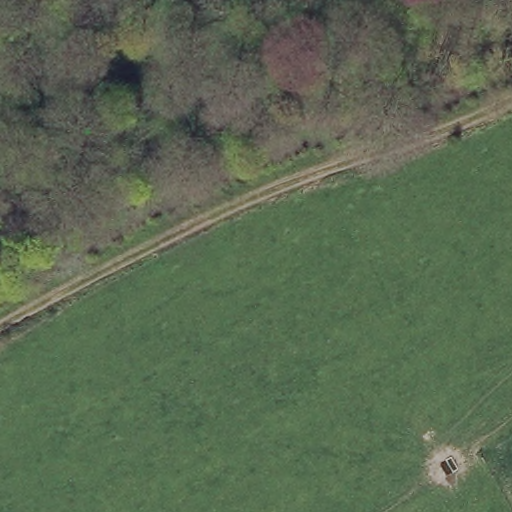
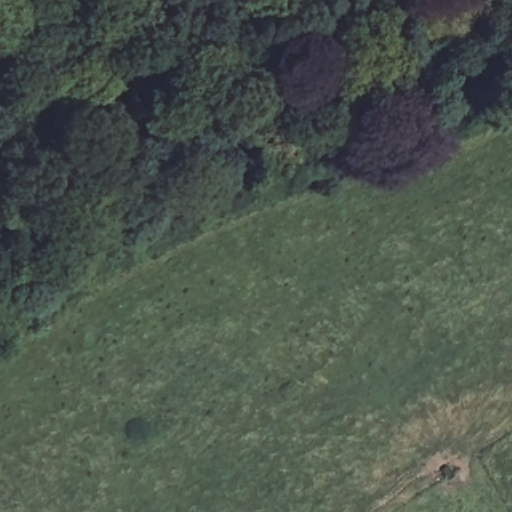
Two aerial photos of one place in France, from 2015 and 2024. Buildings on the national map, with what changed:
[]

